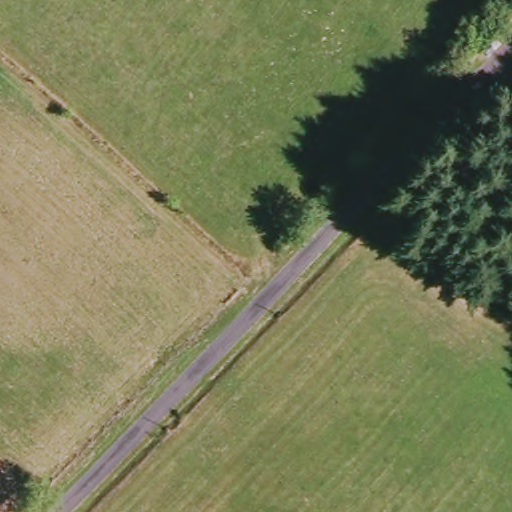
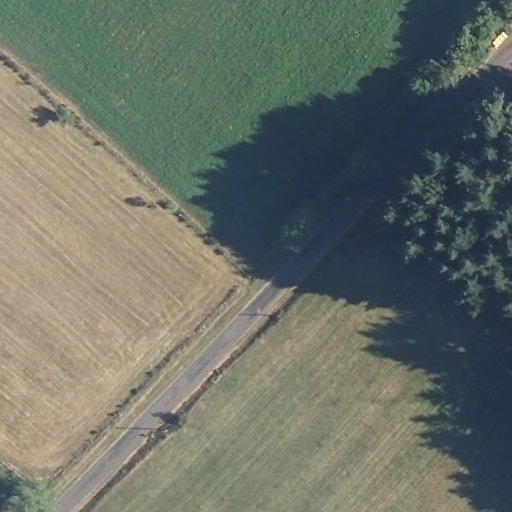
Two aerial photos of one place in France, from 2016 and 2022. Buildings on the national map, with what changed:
[]

